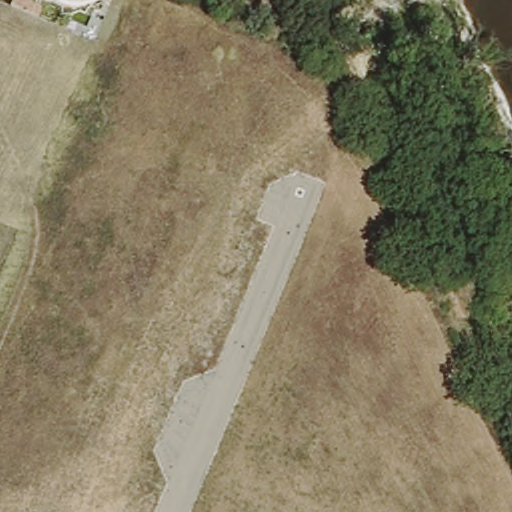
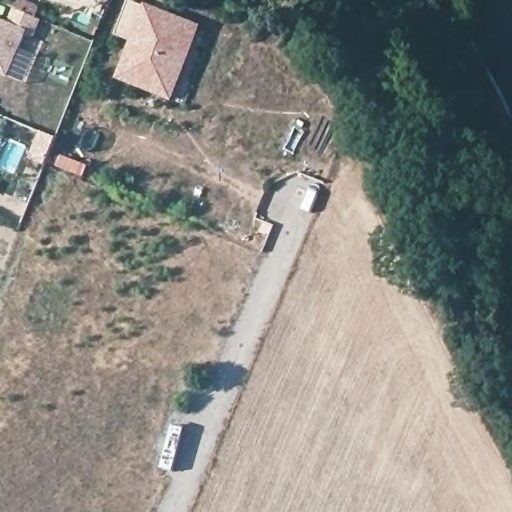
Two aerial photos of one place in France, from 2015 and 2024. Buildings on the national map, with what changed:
new [(15,10),(8,7),(11,0),(26,0),(41,7),(36,18),(39,20),(32,37),(25,34),(7,76),(0,73),(0,23),(8,26),(15,10)]
new [(140,39),(121,32),(133,0),(134,0),(197,23),(204,25),(192,57),(179,93),(143,80),(127,74),(130,65),(140,39)]

